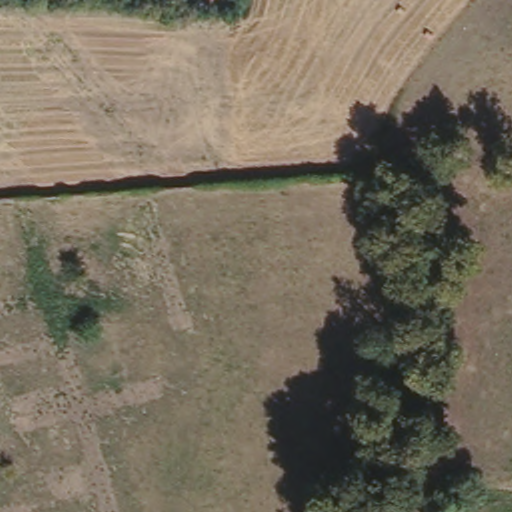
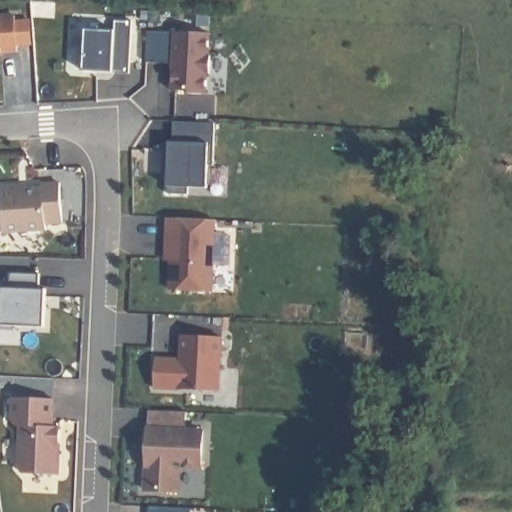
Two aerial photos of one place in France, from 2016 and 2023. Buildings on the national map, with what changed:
new [(85,29),(114,30),(115,20),(132,21),(130,73),(82,71),(85,29)]
new [(209,32),(208,55),(210,55),(210,74),(206,73),(205,93),(190,93),(190,90),(175,90),(176,53),(167,54),(167,61),(145,61),(146,29),(209,32)]
new [(214,123),(212,164),(207,164),(206,187),(187,187),(186,193),(165,193),(166,172),(162,172),(164,142),(172,142),(174,121),(214,123)]
new [(0,187),(16,186),(17,190),(42,188),(42,184),(60,183),(60,194),(62,222),(45,223),(46,229),(2,232),(0,199),(0,187)]
new [(210,291),(170,288),(171,257),(166,258),(168,219),(215,219),(210,291)]
new [(10,272),(39,274),(39,289),(45,289),(44,327),(0,325),(0,287),(9,287),(10,272)]
new [(220,389),(154,387),(155,358),(180,359),(182,335),(220,336),(220,389)]
new [(18,471),(19,428),(11,422),(11,398),(52,400),(52,427),(59,427),(56,474),(18,471)]
new [(185,412),(185,430),(203,431),(201,468),(179,467),(177,491),(145,490),(149,410),(185,412)]

